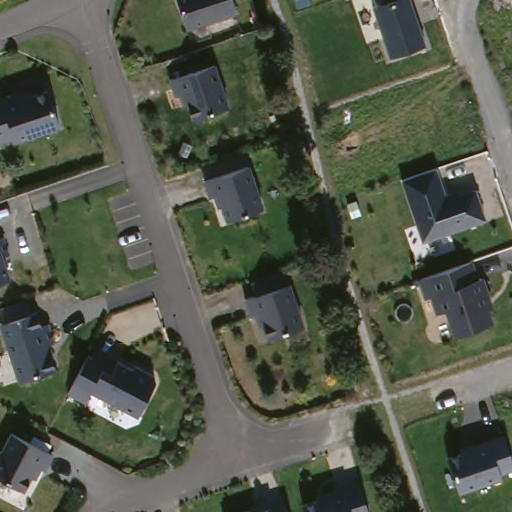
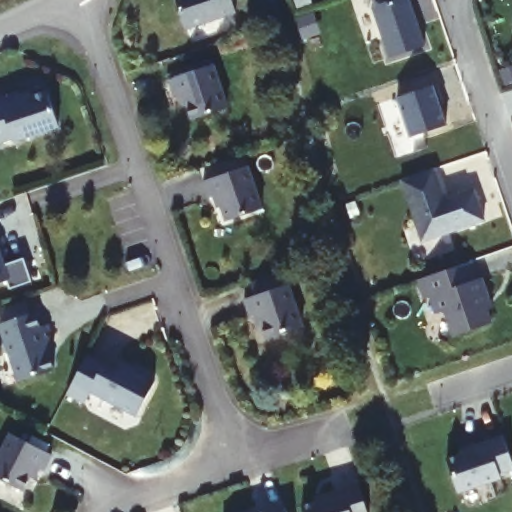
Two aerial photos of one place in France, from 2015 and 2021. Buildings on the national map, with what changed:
unchanged [(186,35),(170,0),(229,0),(234,14),(186,35)]
unchanged [(373,6),(377,5),(375,0),(411,0),(426,43),(390,59),(373,6)]
unchanged [(209,68),(226,113),(191,127),(172,83),(209,68)]
new [(396,98),(433,86),(438,84),(444,101),(440,103),(447,125),(410,138),(396,98)]
unchanged [(13,90),(15,96),(26,92),(27,94),(42,89),(55,124),(11,140),(9,137),(0,141),(0,96),(13,90)]
unchanged [(437,165),(447,197),(476,187),(487,223),(423,247),(396,180),(437,165)]
unchanged [(220,206),(211,209),(203,181),(246,166),(263,215),(228,225),(220,206)]
unchanged [(1,240),(9,264),(3,267),(7,285),(0,288),(0,241),(1,240)]
unchanged [(466,264),(470,280),(480,279),(491,311),(486,314),(491,324),(455,335),(449,325),(443,322),(438,302),(426,306),(417,282),(466,264)]
unchanged [(299,328),(263,340),(254,314),(246,317),(240,301),(284,285),(299,328)]
unchanged [(25,301),(31,316),(34,326),(45,322),(52,349),(48,350),(55,378),(21,389),(13,364),(5,366),(0,351),(0,309),(25,301)]
unchanged [(102,369),(99,374),(108,379),(114,365),(130,373),(132,369),(155,381),(136,419),(89,396),(83,408),(66,399),(84,361),(102,369)]
unchanged [(0,447),(9,434),(48,456),(26,493),(0,477),(0,448),(0,447)]
unchanged [(512,462),(512,471),(497,476),(500,482),(459,494),(447,454),(501,434),(512,462)]
unchanged [(364,512),(300,512),(299,509),(313,505),(311,501),(355,486),(364,512)]
unchanged [(279,512),(253,512),(261,509),(261,511),(276,505),(279,512)]
unchanged [(239,511),(241,512),(238,512),(239,511)]

